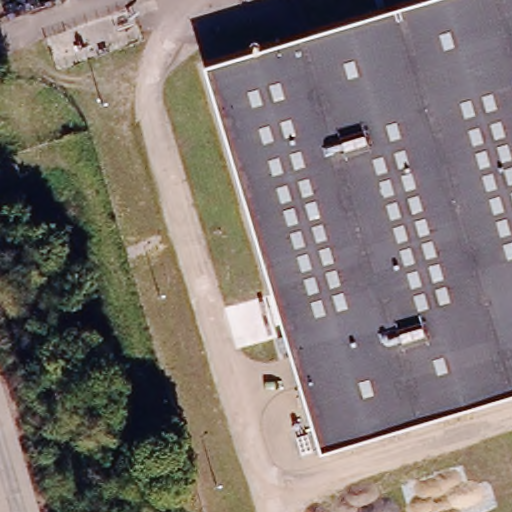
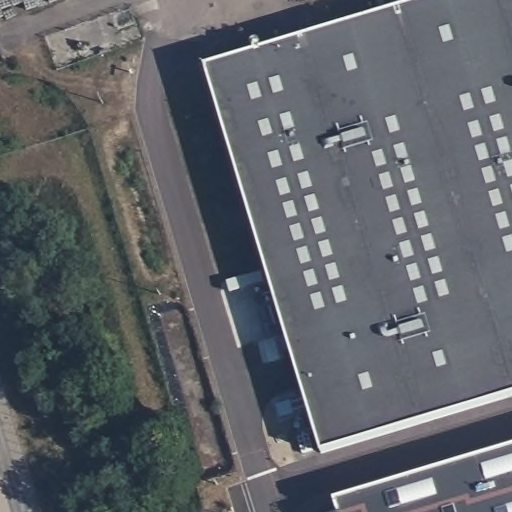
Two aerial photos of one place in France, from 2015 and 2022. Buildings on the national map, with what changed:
unchanged [(200,65),(417,0),(512,0),(512,395),(316,454),(200,65)]
new [(512,512),(338,512),(335,500),(512,447),(512,512)]

